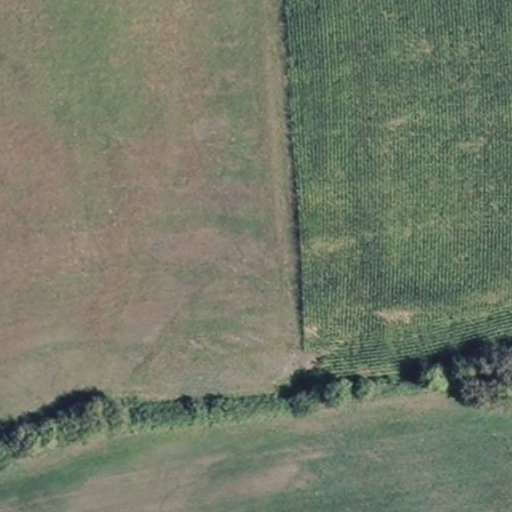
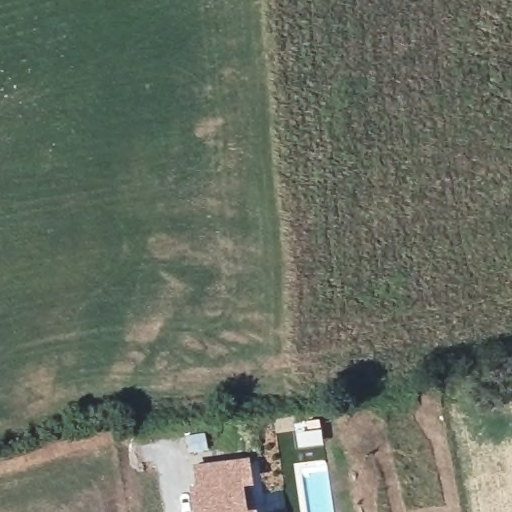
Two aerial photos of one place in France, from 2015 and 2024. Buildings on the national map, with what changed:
new [(196,483),(193,463),(248,455),(252,483),(242,484),(246,507),(256,506),(256,512),(192,512),(188,483),(196,483)]

